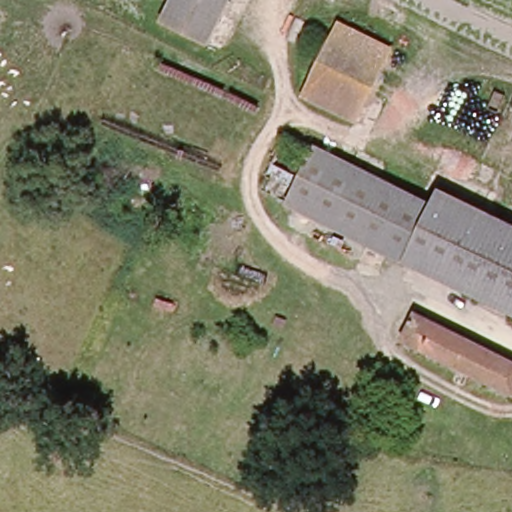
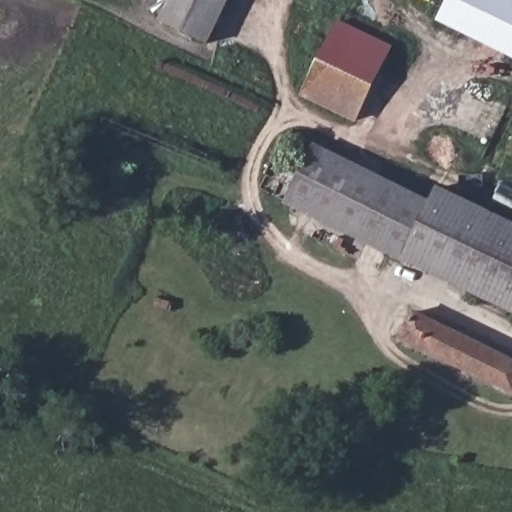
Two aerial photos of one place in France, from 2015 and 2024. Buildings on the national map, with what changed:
unchanged [(161,22),(172,0),(228,0),(207,43),(161,22)]
new [(438,22),(449,0),(512,0),(512,58),(438,22)]
unchanged [(324,107),(303,97),(340,23),(348,27),(394,49),(369,102),(358,124),(324,107)]
unchanged [(288,209),(294,194),(314,152),(424,206),(431,195),(512,233),(512,319),(288,209)]
unchanged [(415,343),(412,342),(422,318),(423,316),(512,359),(512,390),(415,343)]

